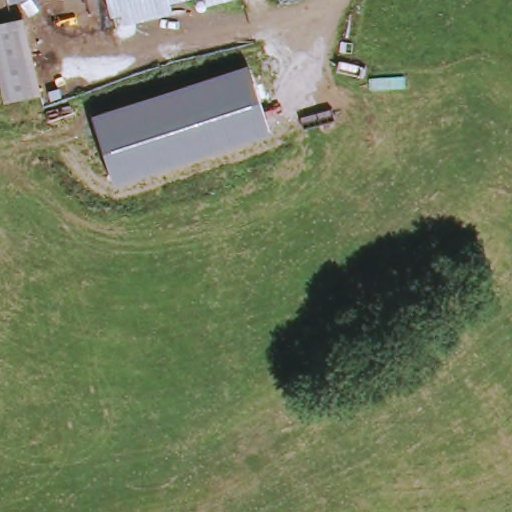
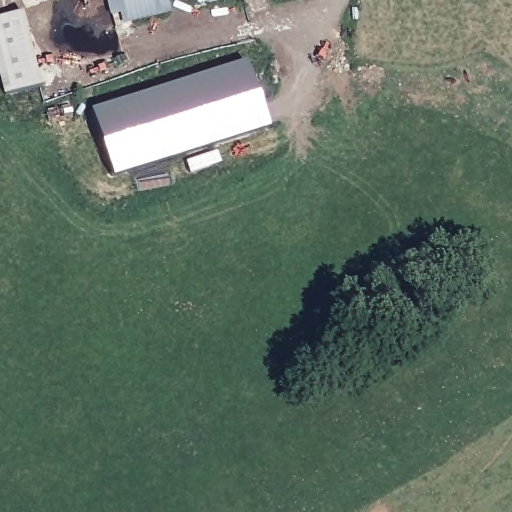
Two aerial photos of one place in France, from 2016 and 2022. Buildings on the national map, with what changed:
unchanged [(25,15),(20,0),(70,0),(25,15)]
unchanged [(94,5),(93,0),(112,0),(94,5)]
unchanged [(118,24),(112,0),(184,0),(118,24)]
unchanged [(7,101),(0,68),(0,26),(29,20),(40,20),(44,40),(33,39),(42,93),(7,101)]
unchanged [(246,62),(268,130),(112,179),(91,112),(246,62)]

